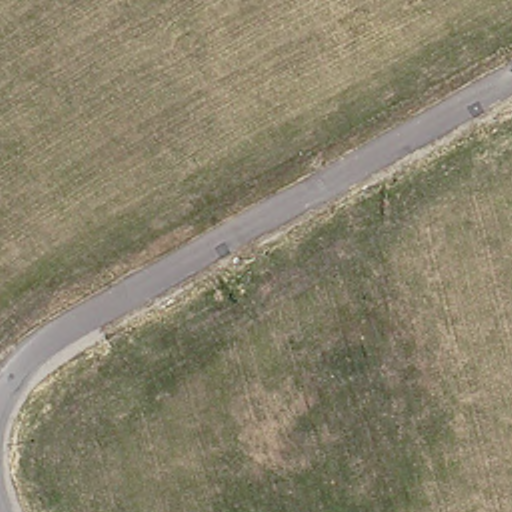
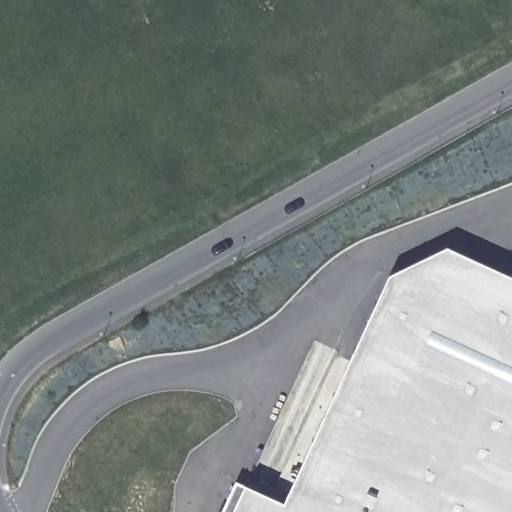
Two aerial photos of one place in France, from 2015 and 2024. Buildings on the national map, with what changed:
new [(384,286),(454,257),(512,281),(512,512),(283,512),(384,286)]
new [(274,512),(222,512),(231,493),(274,512)]

